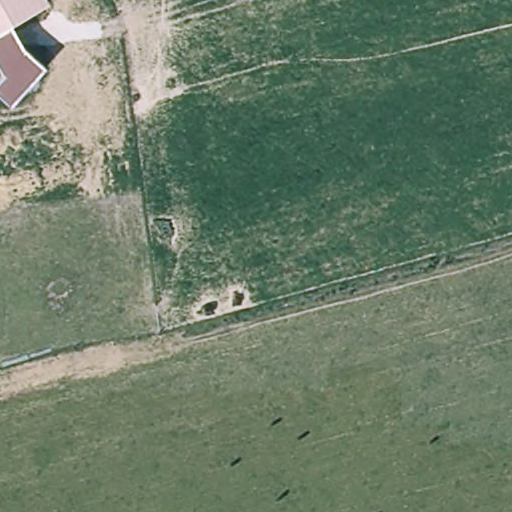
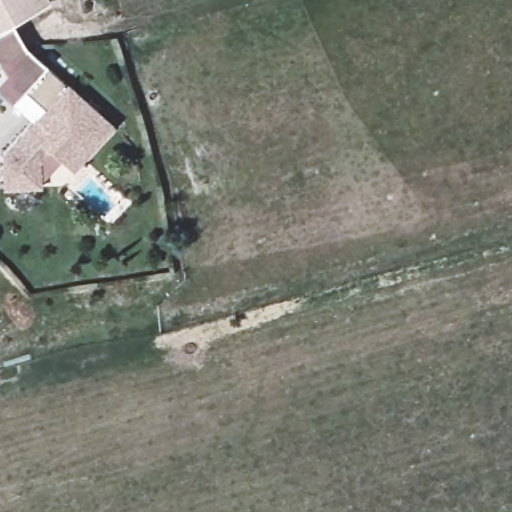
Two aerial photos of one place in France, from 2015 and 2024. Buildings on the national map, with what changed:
unchanged [(12,22),(24,49),(43,66),(10,104),(0,95),(0,76),(3,74),(0,69),(0,0),(47,0),(49,4),(12,22)]
new [(66,83),(114,126),(72,174),(60,163),(42,182),(41,190),(1,192),(0,168),(0,155),(33,120),(42,109),(22,90),(43,66),(64,86),(66,83)]

